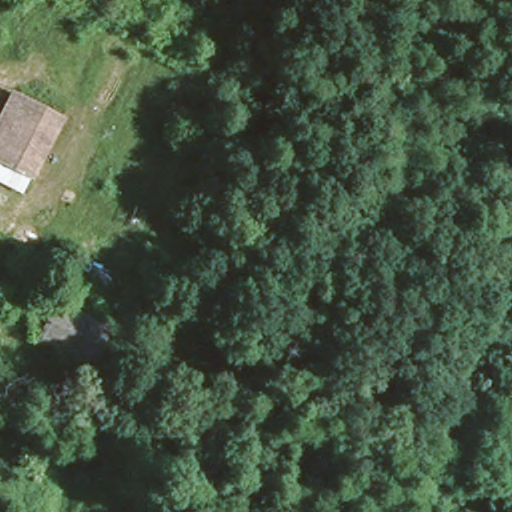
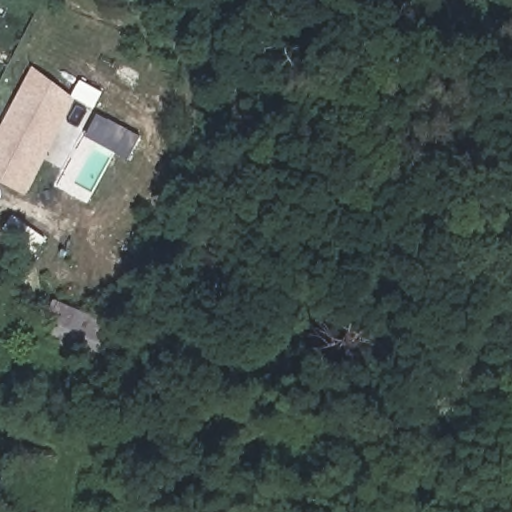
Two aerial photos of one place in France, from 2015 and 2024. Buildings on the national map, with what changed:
unchanged [(15,91),(56,113),(16,187),(0,179),(0,119),(15,91)]
new [(140,135),(128,159),(85,138),(97,114),(140,135)]
unchanged [(36,338),(52,301),(109,326),(93,363),(36,338)]

